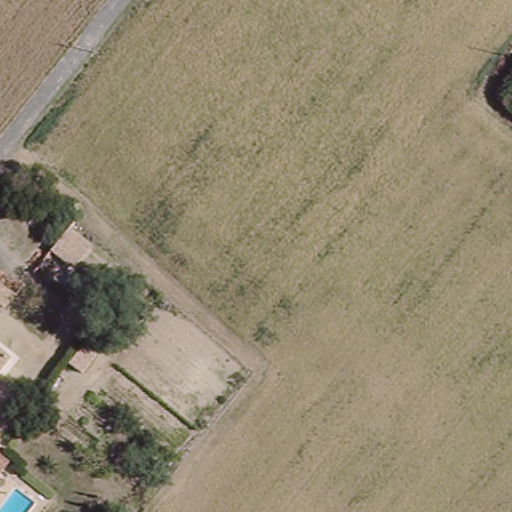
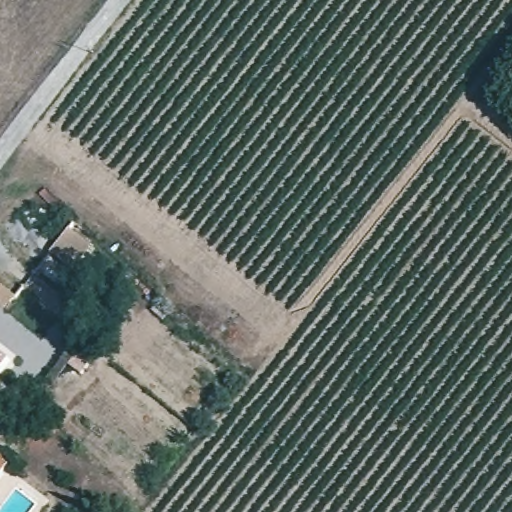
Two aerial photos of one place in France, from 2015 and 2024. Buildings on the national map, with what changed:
unchanged [(0,384),(0,351),(16,364),(0,384)]
unchanged [(0,477),(0,470),(3,473),(0,477)]

